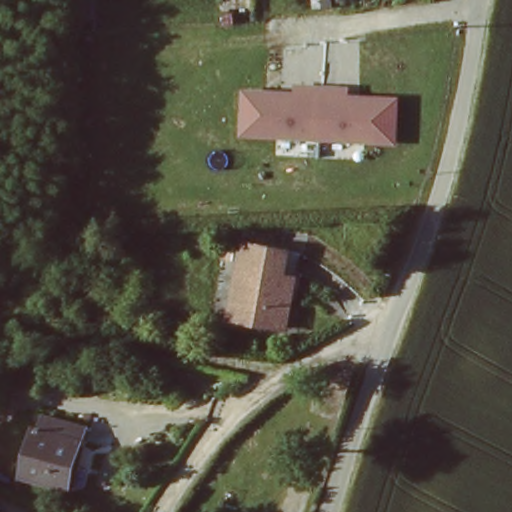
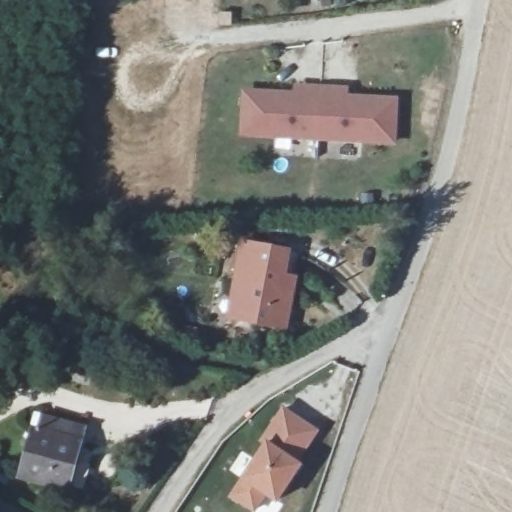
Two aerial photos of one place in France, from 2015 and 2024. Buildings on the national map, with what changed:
unchanged [(399,144),(239,136),(242,88),(295,91),(296,86),(352,88),(351,95),(400,96),(399,144)]
unchanged [(233,278),(239,242),(287,251),(278,289),(296,291),(286,331),(238,323),(226,321),(233,278)]
new [(264,445),(258,443),(284,405),(321,430),(301,462),(305,464),(278,505),(267,497),(257,512),(253,512),(230,497),(241,480),(264,445)]
unchanged [(27,442),(37,443),(48,408),(87,419),(64,504),(13,493),(27,442)]

